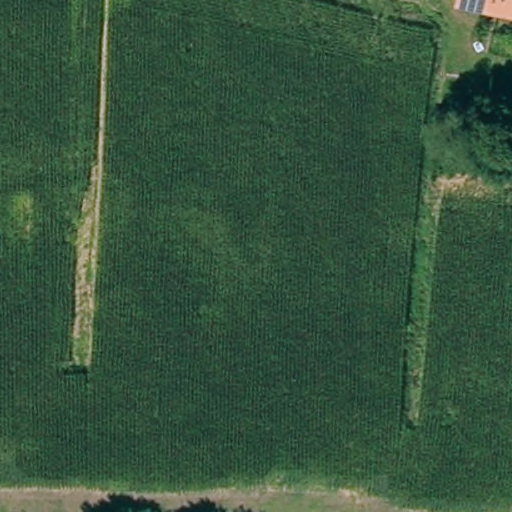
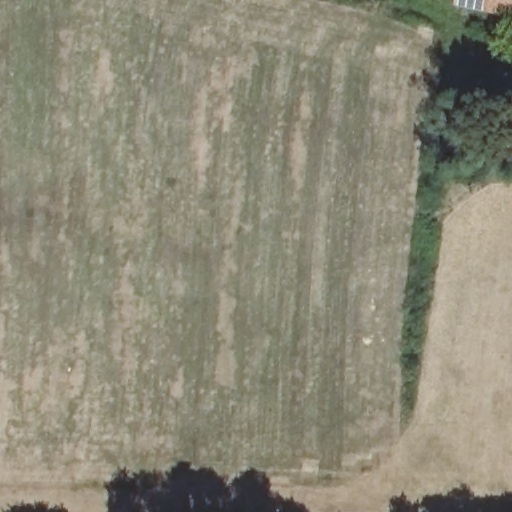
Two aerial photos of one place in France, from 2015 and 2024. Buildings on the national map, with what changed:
unchanged [(459,8),(461,0),(512,0),(512,17),(459,8)]

